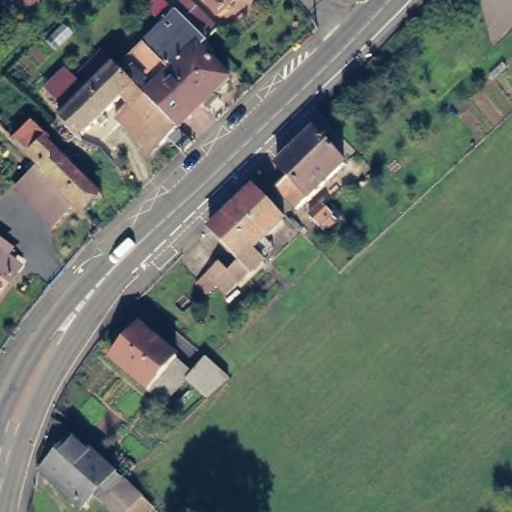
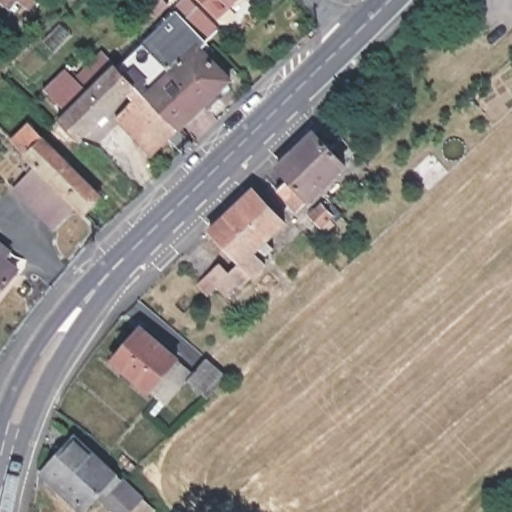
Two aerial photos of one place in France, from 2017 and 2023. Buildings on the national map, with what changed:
unchanged [(22,3),(15,11),(1,0),(42,0),(33,13),(22,3)]
unchanged [(217,19),(201,0),(239,0),(232,6),(217,19)]
unchanged [(200,11),(220,33),(209,44),(202,50),(233,83),(181,131),(119,69),(159,33),(157,29),(177,10),(188,21),(200,11)]
unchanged [(57,128),(63,122),(100,85),(90,74),(107,57),(118,68),(119,69),(181,131),(196,146),(187,154),(172,139),(157,155),(122,122),(137,106),(128,98),(85,143),(80,138),(73,144),(57,128)]
unchanged [(27,130),(40,143),(45,139),(107,197),(90,215),(80,206),(43,170),(15,143),(27,130)]
unchanged [(307,136),(338,168),(293,210),(273,189),(282,180),(272,169),(307,136)]
unchanged [(80,206),(63,222),(27,185),(43,170),(80,206)]
unchanged [(250,190),(281,222),(262,240),(270,249),(257,262),(262,267),(237,290),(232,285),(227,291),(217,281),(207,289),(199,281),(222,258),(233,268),(240,261),(208,230),(250,190)]
unchanged [(316,219),(327,209),(335,218),(324,228),(316,219)]
unchanged [(15,254),(9,262),(22,273),(0,300),(0,242),(15,254)]
unchanged [(140,330),(175,361),(147,393),(112,363),(140,330)]
unchanged [(185,384),(205,359),(227,379),(205,400),(185,384)]
unchanged [(113,483),(147,512),(123,512),(125,509),(107,493),(104,496),(96,489),(77,509),(40,476),(68,443),(113,483)]

